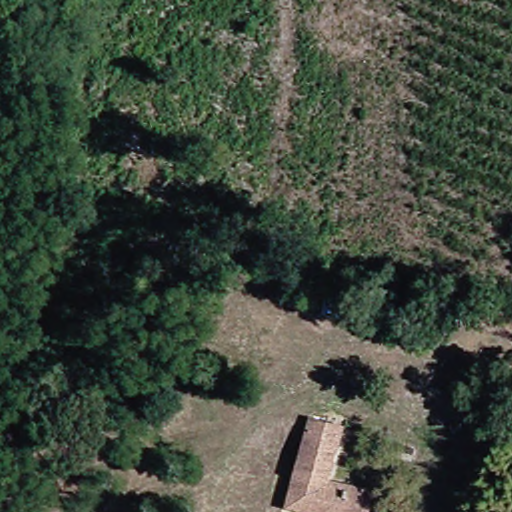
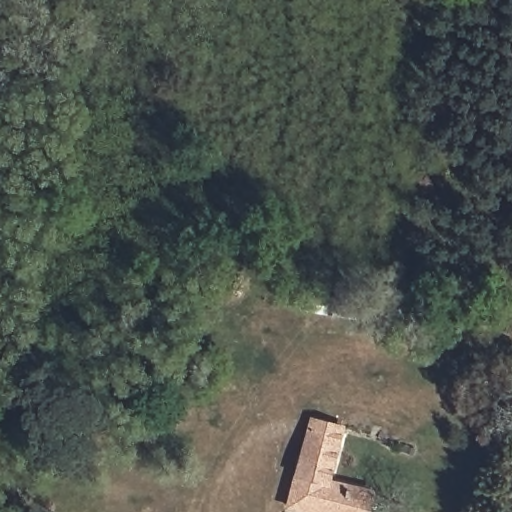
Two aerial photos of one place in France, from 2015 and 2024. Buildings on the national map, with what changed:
unchanged [(302,512),(282,507),(299,421),(331,429),(321,478),(339,482),(363,488),(358,512),(302,512)]

